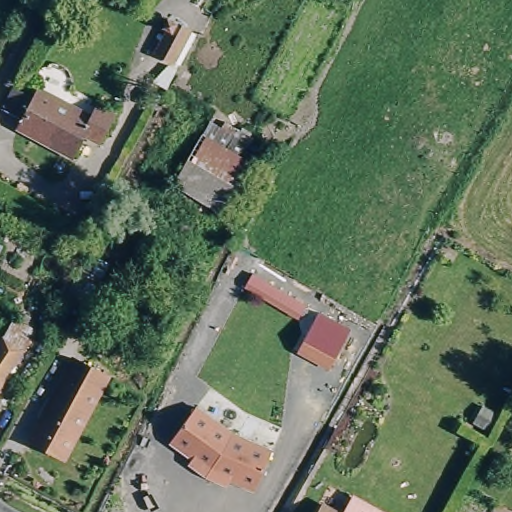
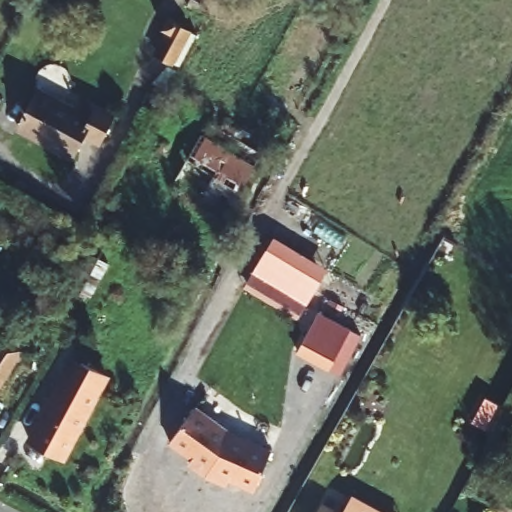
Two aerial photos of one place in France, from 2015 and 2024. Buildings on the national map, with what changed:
unchanged [(196,32),(176,66),(153,54),(170,16),(196,32)]
unchanged [(98,116),(105,105),(122,115),(107,142),(86,130),(74,152),(23,124),(27,118),(18,113),(5,107),(17,83),(31,90),(40,94),(45,86),(98,116)]
unchanged [(204,134),(211,122),(223,128),(226,121),(241,129),(243,126),(253,132),(251,138),(265,145),(256,164),(204,134)]
unchanged [(256,164),(226,215),(174,185),(204,134),(256,164)]
unchanged [(106,237),(70,308),(60,303),(84,254),(76,250),(83,238),(85,234),(88,229),(89,228),(106,237)]
new [(244,287),(253,272),(274,238),(328,269),(306,305),(298,318),(244,287)]
unchanged [(351,329),(329,369),(296,352),(319,312),(351,329)]
unchanged [(31,339),(0,390),(0,344),(10,327),(31,339)]
unchanged [(28,440),(68,367),(101,384),(61,459),(28,440)]
new [(492,411),(484,428),(476,425),(483,407),(492,411)]
unchanged [(225,443),(264,465),(242,503),(218,489),(215,494),(196,483),(181,469),(184,465),(163,446),(193,414),(225,443)]
unchanged [(316,506),(327,512),(313,512),(316,506)]
unchanged [(359,507),(367,512),(356,512),(359,507)]

